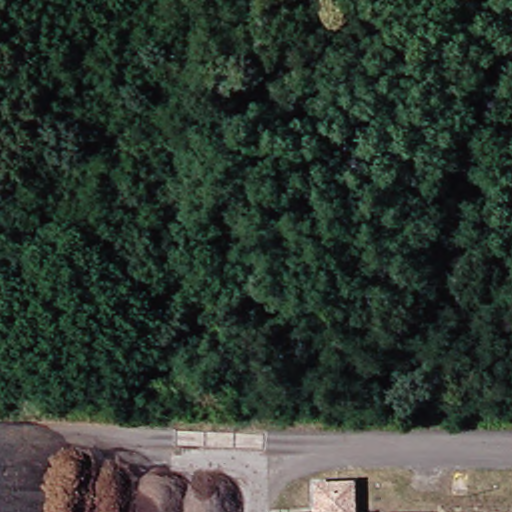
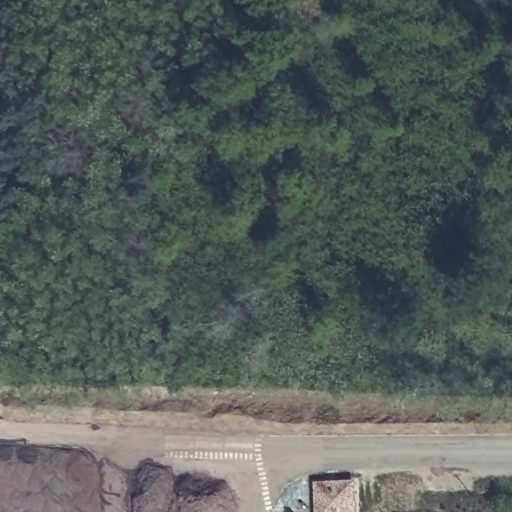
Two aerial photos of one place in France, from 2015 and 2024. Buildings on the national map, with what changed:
unchanged [(355,483),(352,512),(315,512),(318,478),(355,483)]

